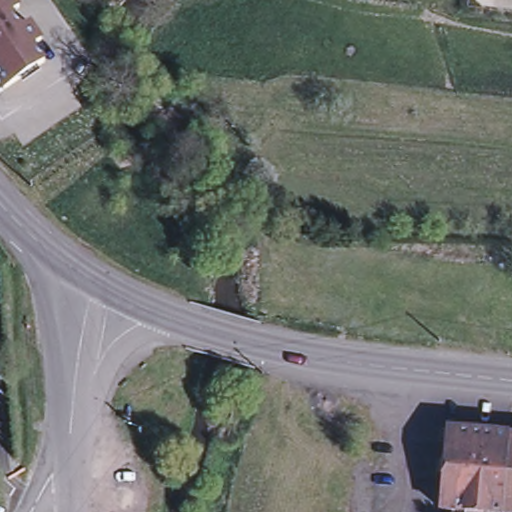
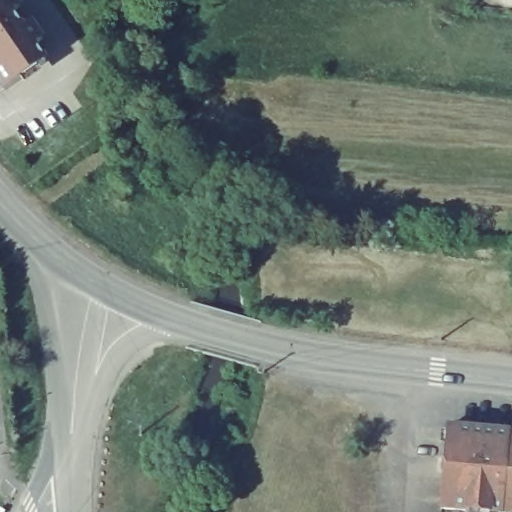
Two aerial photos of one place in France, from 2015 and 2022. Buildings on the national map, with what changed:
unchanged [(25,7),(17,13),(27,29),(35,22),(47,40),(39,45),(50,62),(9,90),(3,94),(0,90),(0,0),(20,0),(25,7)]
unchanged [(438,426),(500,432),(493,512),(474,512),(431,508),(438,426)]
unchanged [(512,434),(512,512),(493,512),(500,432),(512,434)]

